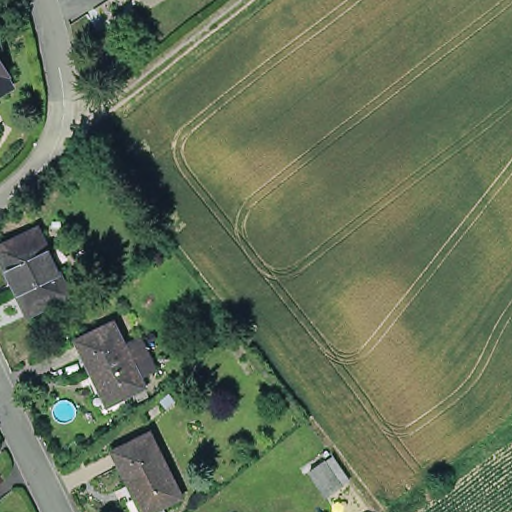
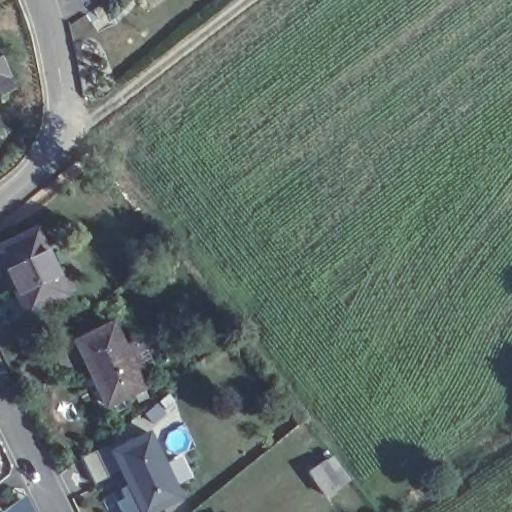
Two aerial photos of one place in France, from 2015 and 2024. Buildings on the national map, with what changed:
unchanged [(10,79),(15,86),(0,96),(0,54),(12,76),(10,79)]
unchanged [(75,299),(38,316),(9,253),(46,235),(75,299)]
unchanged [(112,408),(82,340),(120,323),(131,347),(150,339),(164,372),(145,380),(150,392),(112,408)]
unchanged [(110,459),(149,444),(175,501),(148,512),(134,512),(110,459)]
unchanged [(333,456),(352,484),(327,499),(310,474),(333,456)]

